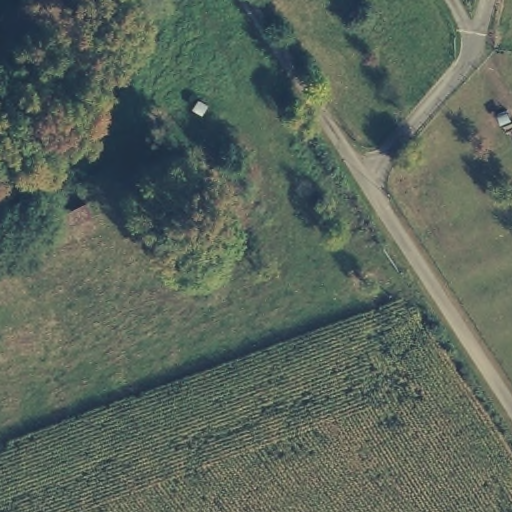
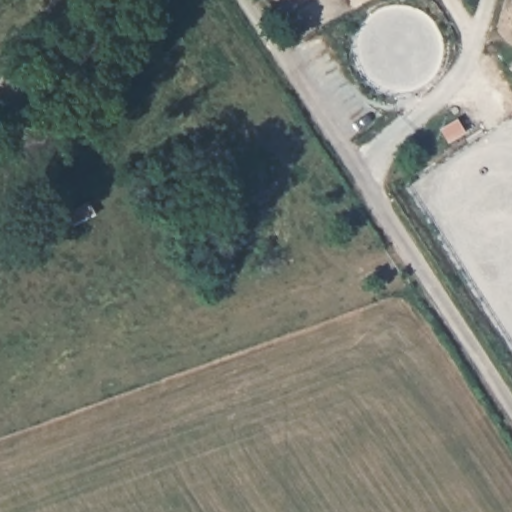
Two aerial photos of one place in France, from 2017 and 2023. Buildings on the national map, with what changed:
unchanged [(45,196),(58,213),(22,236),(10,216),(45,196)]

